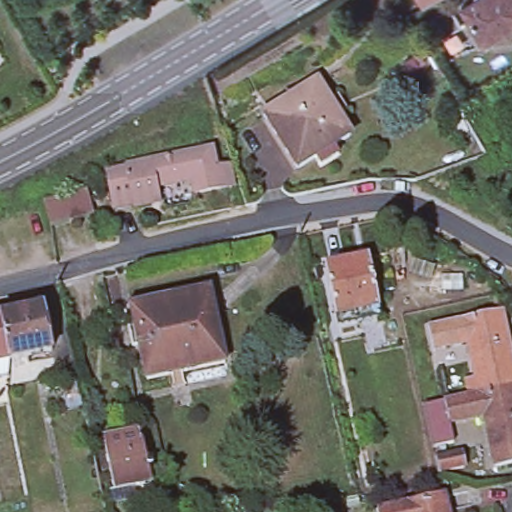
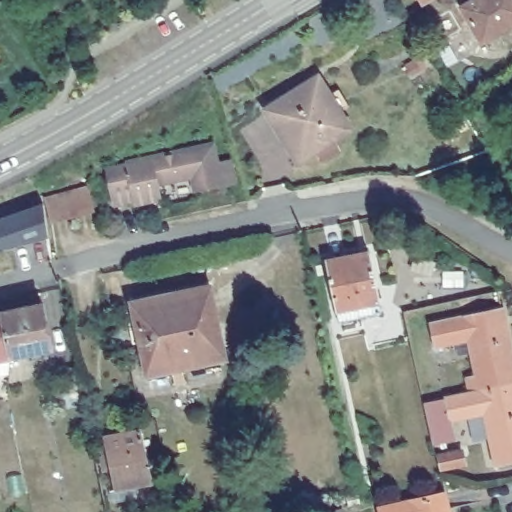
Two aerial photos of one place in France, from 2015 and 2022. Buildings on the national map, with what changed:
unchanged [(419,0),(440,0),(425,9),(419,0)]
unchanged [(471,2),(474,0),(512,0),(512,26),(492,37),(471,2)]
unchanged [(461,3),(472,22),(451,34),(440,14),(461,3)]
unchanged [(313,76),(323,93),(334,87),(345,105),(334,110),(346,129),(292,163),(281,144),(285,141),(276,125),(272,130),(260,109),(313,76)]
unchanged [(101,163),(121,160),(120,154),(206,140),(209,159),(222,157),(226,176),(212,179),(187,183),(185,170),(148,176),(150,190),(126,194),(126,190),(106,194),(101,163)]
unchanged [(47,196),(90,185),(92,185),(97,211),(95,212),(55,222),(47,196)]
new [(47,236),(0,248),(0,219),(43,207),(47,236)]
unchanged [(322,257),(371,249),(382,296),(385,312),(337,320),(334,306),(322,257)]
unchanged [(127,304),(208,287),(219,345),(140,361),(127,304)]
unchanged [(430,315),(505,301),(512,333),(512,381),(484,387),(472,332),(436,339),(430,315)]
unchanged [(10,314),(47,305),(56,344),(19,354),(10,314)]
unchanged [(0,359),(0,316),(10,314),(19,354),(0,359)]
unchanged [(222,361),(143,376),(140,361),(219,345),(222,361)]
unchanged [(512,381),(512,459),(499,462),(488,406),(450,415),(455,432),(435,437),(426,400),(446,395),(484,387),(512,381)]
unchanged [(115,490),(105,442),(147,434),(150,450),(157,481),(115,490)]
unchanged [(437,452),(462,446),(466,461),(441,467),(437,452)]
unchanged [(379,501),(445,487),(451,512),(381,512),(379,501)]

